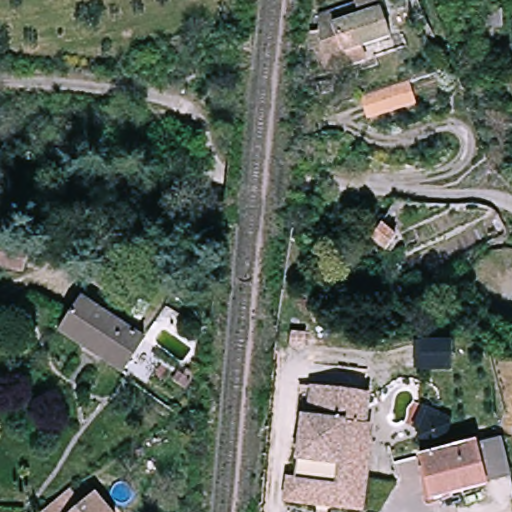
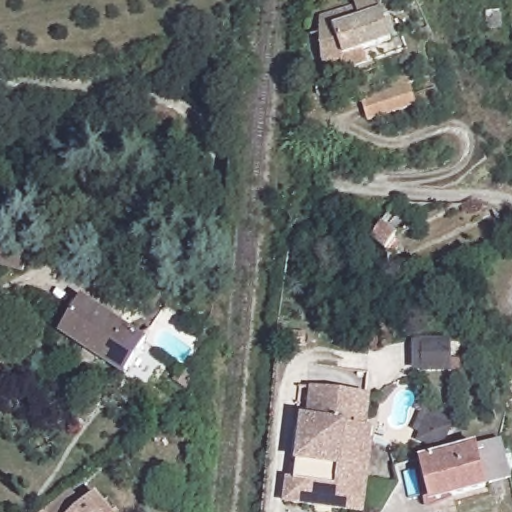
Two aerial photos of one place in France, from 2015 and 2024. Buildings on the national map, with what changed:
unchanged [(366,50),(369,63),(326,75),(332,15),(359,7),(357,0),(385,0),(397,40),(366,50)]
unchanged [(334,96),(321,97),(319,84),(332,82),(334,96)]
unchanged [(418,105),(371,117),(366,97),(412,85),(418,105)]
unchanged [(376,235),(384,224),(401,236),(388,252),(376,235)]
unchanged [(0,261),(0,248),(6,238),(34,260),(20,277),(0,261)]
unchanged [(130,374),(68,330),(91,299),(153,343),(130,374)]
unchanged [(304,333),(289,331),(291,320),(306,321),(304,333)]
unchanged [(294,482),(294,480),(303,424),(304,420),(310,421),(311,411),(313,401),(314,391),(326,392),(344,395),(371,399),(368,428),(373,430),(371,443),(374,443),(363,506),(334,502),(336,488),(313,485),(294,482)]
unchanged [(494,480),(496,481),(441,502),(425,461),(479,441),(481,443),(505,435),(512,455),(512,473),(494,480)]
unchanged [(288,479),(294,480),(294,482),(313,485),(336,488),(334,502),(363,506),(362,512),(346,512),(318,507),(284,502),(288,479)]
unchanged [(85,507),(91,503),(98,512),(49,512),(74,492),(85,507)]

